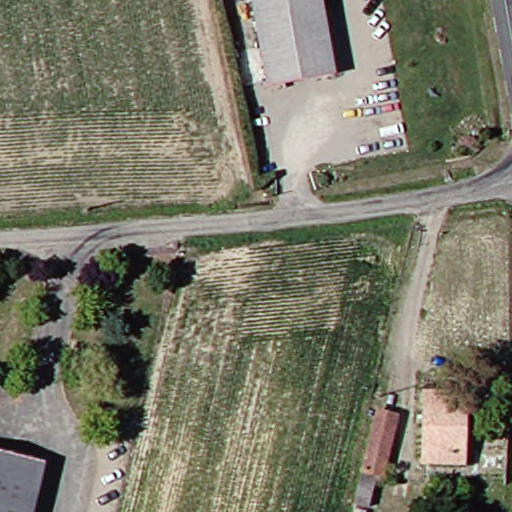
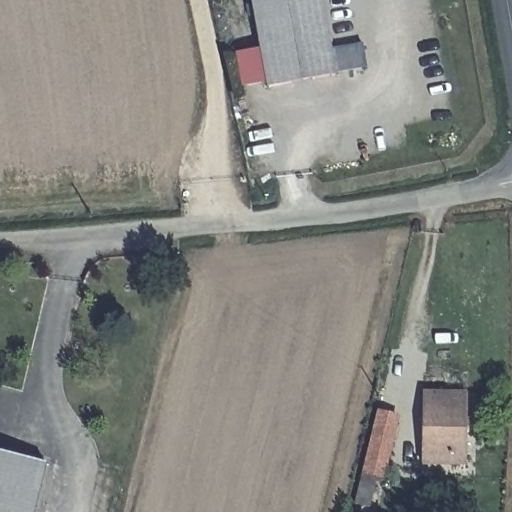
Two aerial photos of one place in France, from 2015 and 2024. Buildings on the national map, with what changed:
unchanged [(253,0),(323,0),(337,76),(270,89),(253,0)]
unchanged [(429,461),(427,395),(462,394),(465,460),(429,461)]
unchanged [(372,457),(386,407),(405,413),(390,462),(372,457)]
unchanged [(47,465),(36,512),(0,512),(0,453),(47,465)]
unchanged [(367,492),(373,466),(388,470),(382,496),(367,492)]

